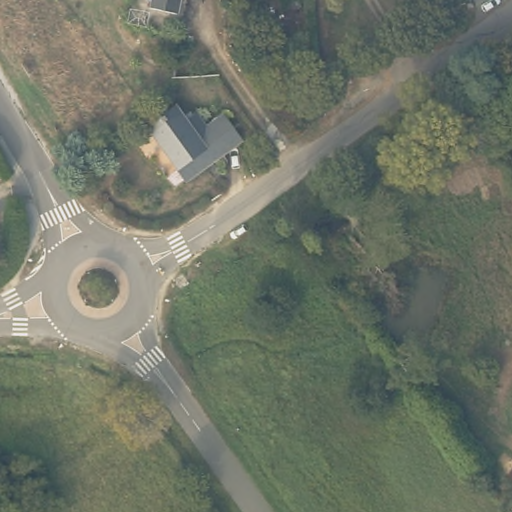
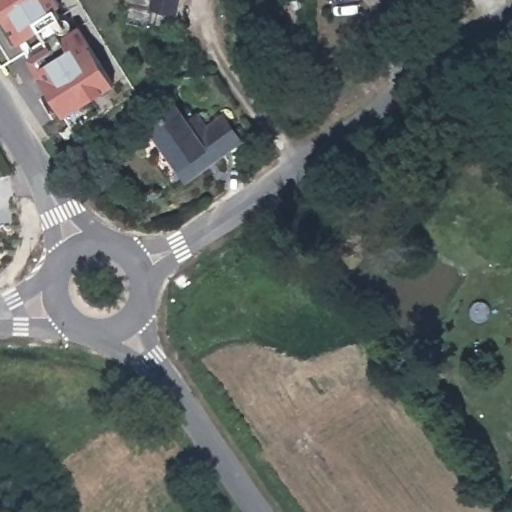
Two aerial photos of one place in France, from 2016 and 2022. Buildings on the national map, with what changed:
new [(55,9),(60,16),(52,21),(62,36),(78,26),(113,84),(64,115),(0,12),(0,0),(57,0),(60,5),(55,9)]
unchanged [(124,18),(128,0),(179,0),(172,29),(124,18)]
unchanged [(176,107),(187,122),(196,115),(206,128),(222,116),(240,140),(186,179),(149,126),(176,107)]

